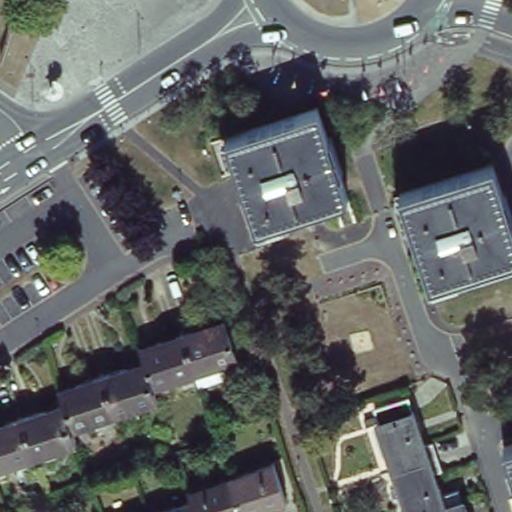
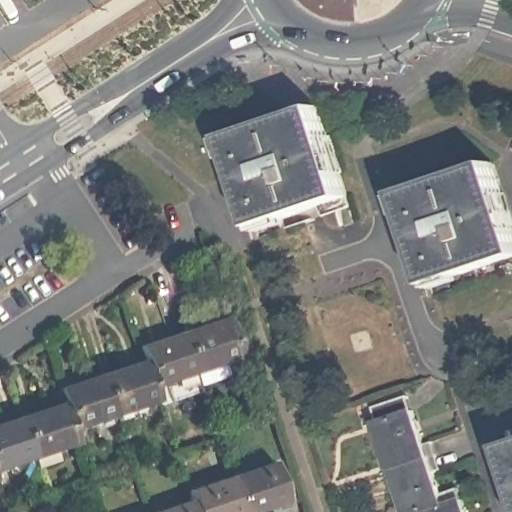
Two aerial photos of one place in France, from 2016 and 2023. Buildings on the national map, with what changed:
unchanged [(352,197),(261,228),(230,138),(322,107),(352,197)]
unchanged [(512,205),(512,253),(435,280),(405,190),(497,159),(512,205)]
unchanged [(182,339),(225,325),(238,362),(223,367),(227,382),(200,391),(195,376),(152,391),(157,404),(71,433),(75,447),(0,472),(0,430),(62,410),(58,396),(144,367),(140,353),(182,339)]
unchanged [(373,409),(407,397),(412,411),(413,412),(424,445),(431,443),(441,470),(433,473),(441,495),(458,489),(462,500),(466,512),(405,512),(376,424),(377,423),(373,409)]
unchanged [(503,443),(512,439),(512,470),(503,443)]
unchanged [(191,497),(187,487),(231,472),(273,458),(286,496),(243,511),(238,512),(143,512),(147,511),(191,497)]

